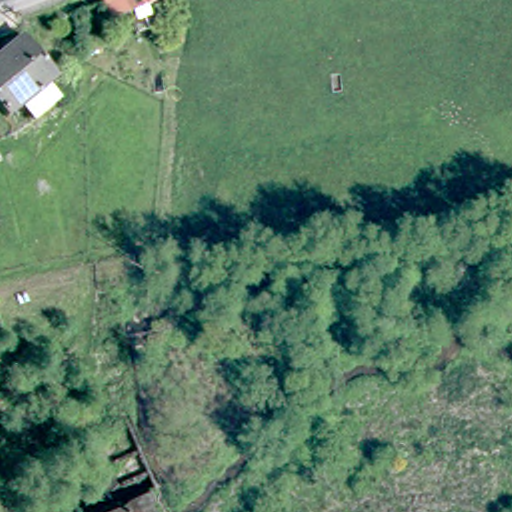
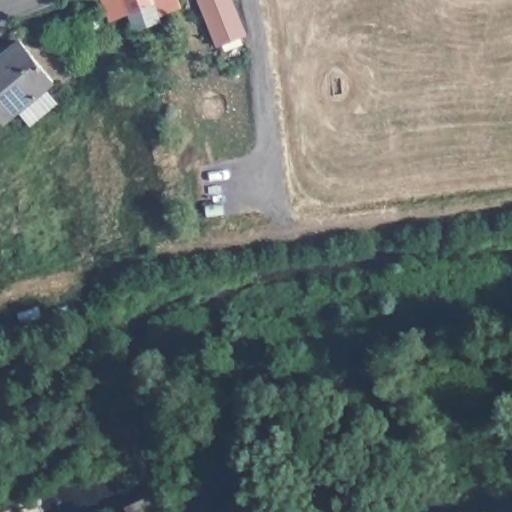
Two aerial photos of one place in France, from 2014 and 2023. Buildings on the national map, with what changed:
demolished [(123,0),(151,0),(127,9),(123,0)]
new [(127,9),(123,0),(151,0),(127,9)]
new [(181,6),(162,13),(156,0),(178,0),(181,6)]
new [(200,0),(232,0),(247,35),(220,46),(200,0)]
unchanged [(26,104),(11,117),(0,104),(0,58),(25,37),(59,77),(50,85),(60,97),(36,117),(26,104)]
unchanged [(161,509),(159,510),(160,512),(134,512),(157,502),(161,509)]

